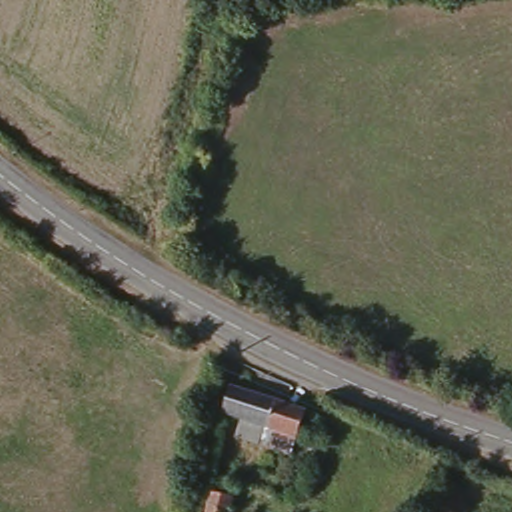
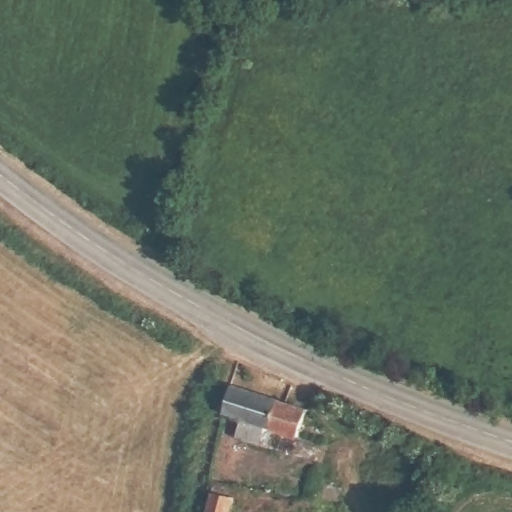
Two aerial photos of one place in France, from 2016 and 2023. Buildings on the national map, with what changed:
unchanged [(297,446),(219,415),(231,380),(309,414),(297,446)]
unchanged [(211,492),(235,497),(233,512),(207,512),(211,492)]

